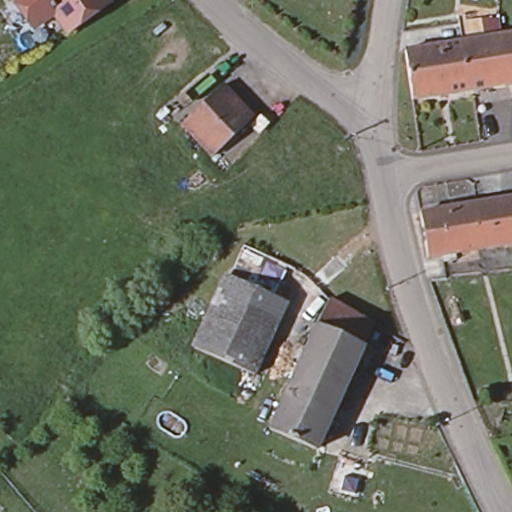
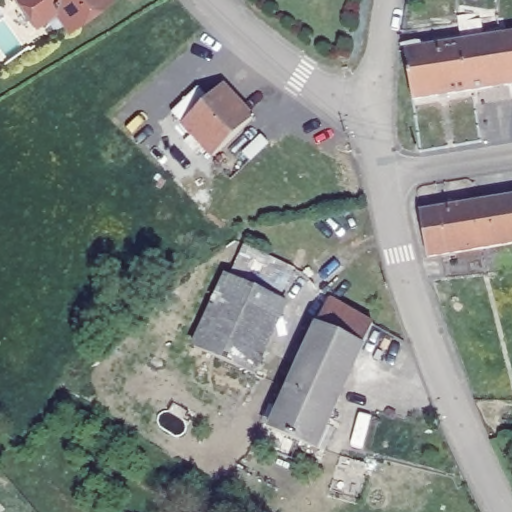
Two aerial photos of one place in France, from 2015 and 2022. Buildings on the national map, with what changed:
unchanged [(49,5),(29,19),(15,0),(91,0),(62,21),(49,5)]
unchanged [(512,34),(512,86),(509,86),(490,90),(481,40),(501,36),(512,34)]
unchanged [(481,40),(490,90),(414,103),(407,52),(481,40)]
unchanged [(249,120),(207,158),(176,124),(218,86),(249,120)]
unchanged [(498,246),(490,201),(512,197),(512,243),(498,246)]
unchanged [(430,256),(423,212),(490,201),(498,246),(430,256)]
unchanged [(285,302),(253,372),(194,346),(225,275),(285,302)]
unchanged [(370,324),(360,345),(314,325),(326,298),(370,324)]
unchanged [(314,325),(360,345),(330,411),(284,391),(314,325)]
unchanged [(330,411),(314,448),(268,428),(284,391),(330,411)]

